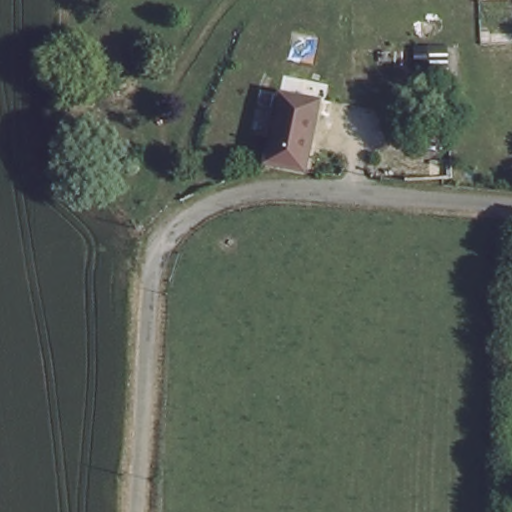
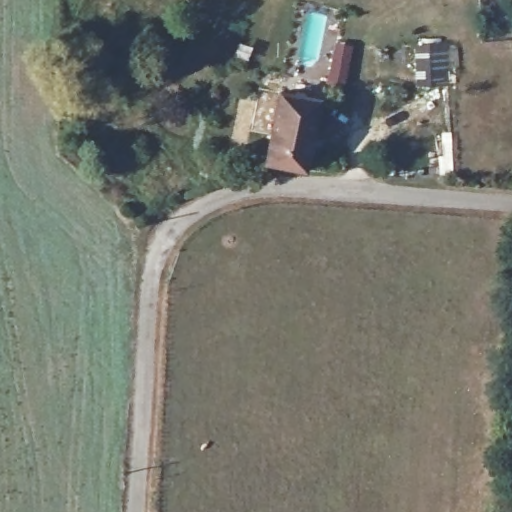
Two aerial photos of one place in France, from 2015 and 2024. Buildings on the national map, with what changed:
unchanged [(298,170),(262,159),(281,92),(316,102),(298,170)]

